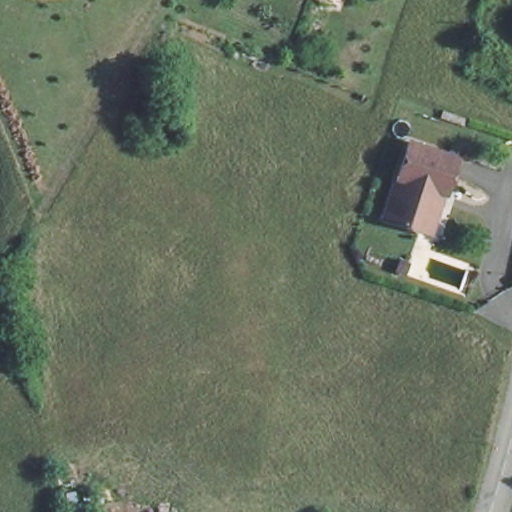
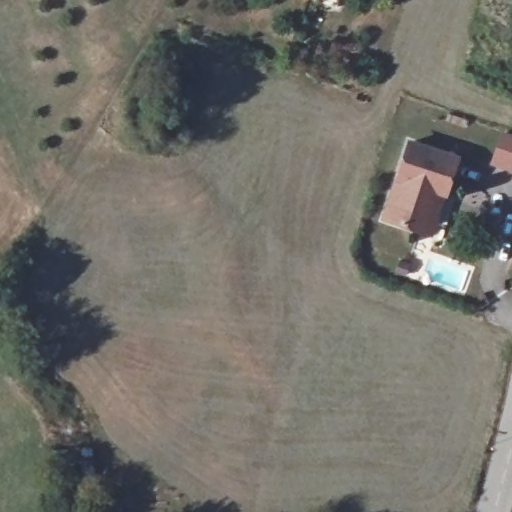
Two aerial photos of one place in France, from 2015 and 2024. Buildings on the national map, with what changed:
new [(501,131),(512,135),(512,172),(490,164),(501,131)]
unchanged [(424,230),(387,219),(410,142),(460,156),(448,193),(446,192),(434,233),(424,230)]

